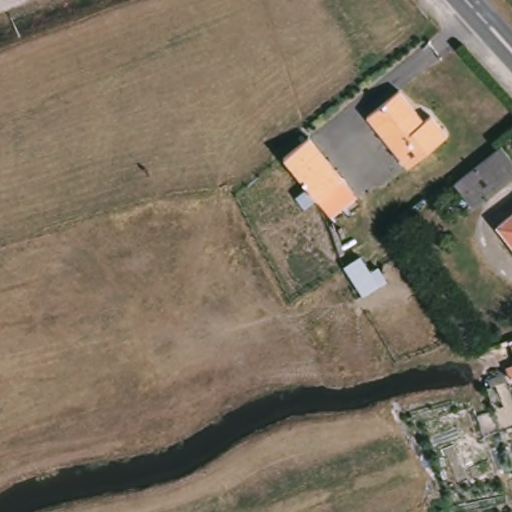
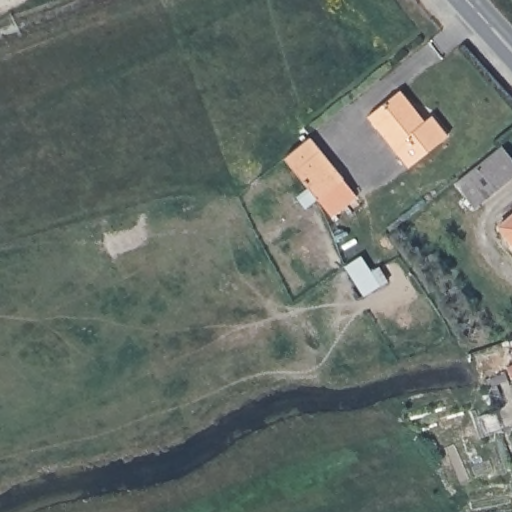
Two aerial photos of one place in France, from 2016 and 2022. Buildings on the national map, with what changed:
unchanged [(395,96),(416,123),(413,125),(416,130),(426,121),(441,141),(403,171),(364,121),(395,96)]
unchanged [(330,221),(316,204),(284,164),(309,142),(341,183),(355,200),(330,221)]
unchanged [(512,171),(512,178),(468,214),(450,190),(496,152),(512,171)]
unchanged [(497,231),(512,220),(512,249),(497,231)]
unchanged [(512,349),(512,363),(507,350),(512,349)]
unchanged [(505,384),(500,372),(512,367),(512,381),(505,384)]
unchanged [(499,380),(502,385),(491,390),(489,383),(499,380)]

